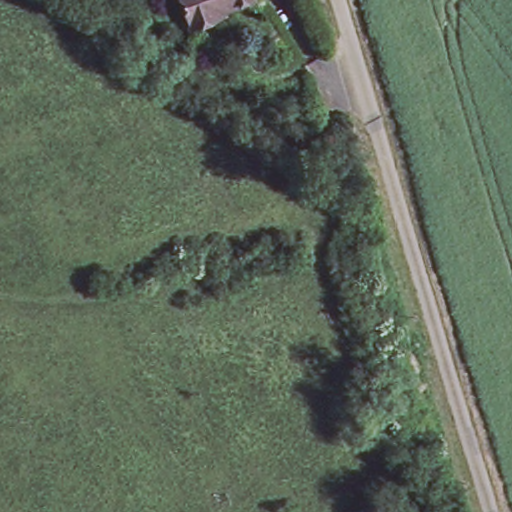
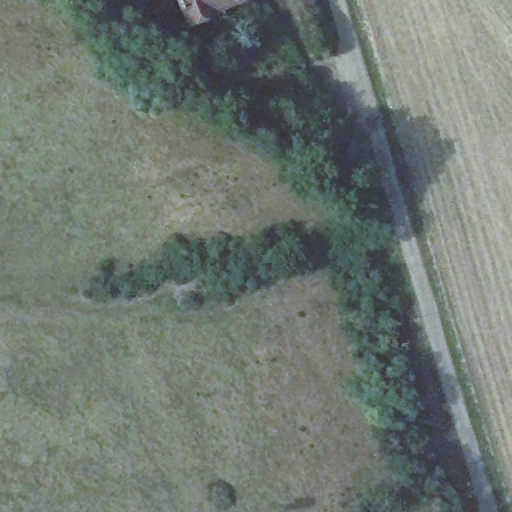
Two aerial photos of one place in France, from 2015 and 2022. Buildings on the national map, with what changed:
unchanged [(196,28),(182,0),(243,0),(218,11),(221,17),(196,28)]

